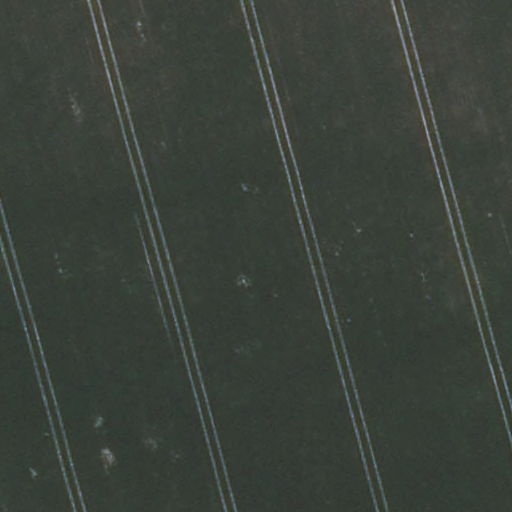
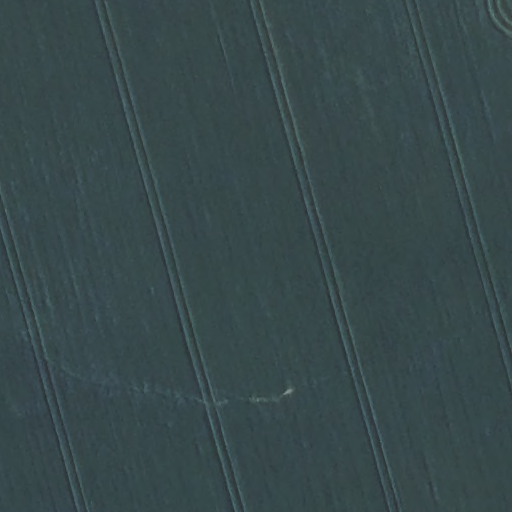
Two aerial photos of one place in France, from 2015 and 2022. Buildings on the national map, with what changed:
[]

